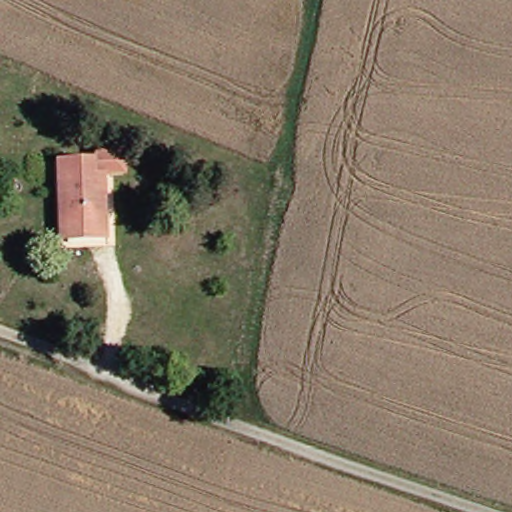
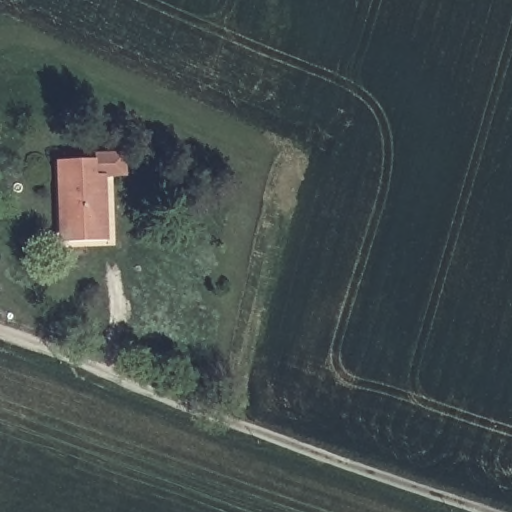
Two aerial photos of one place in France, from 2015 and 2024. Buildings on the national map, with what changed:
unchanged [(54,179),(53,161),(92,160),(93,176),(102,176),(105,241),(64,243),(57,243),(54,179)]

